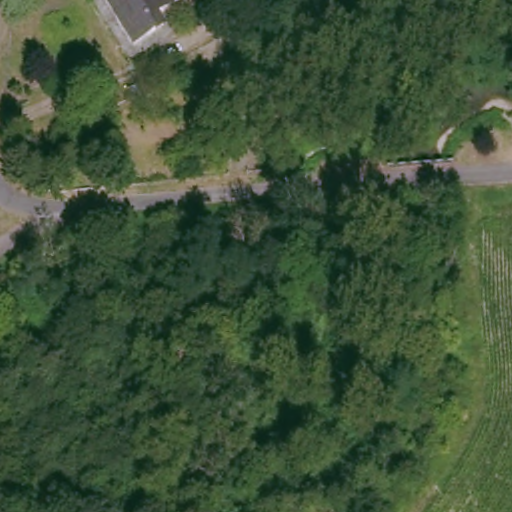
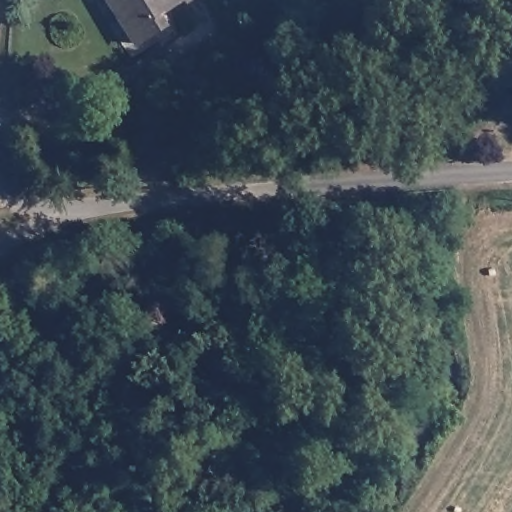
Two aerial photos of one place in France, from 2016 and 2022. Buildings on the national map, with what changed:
unchanged [(139,41),(114,0),(184,0),(176,5),(164,13),(169,23),(161,28),(139,41)]

